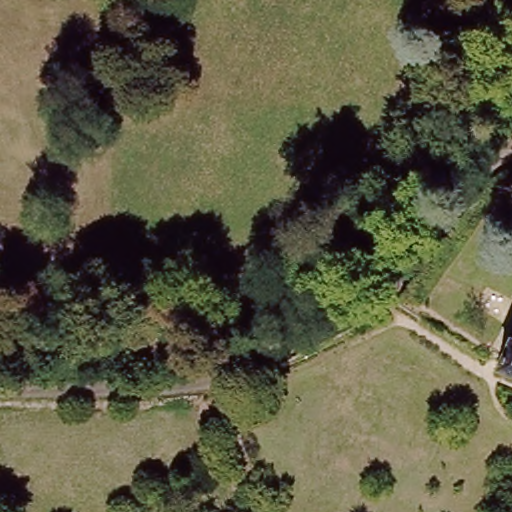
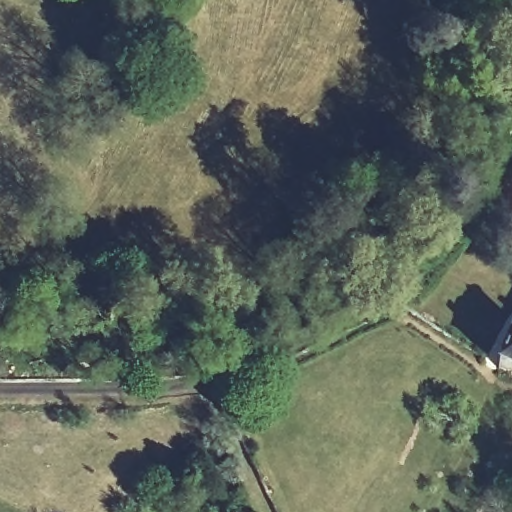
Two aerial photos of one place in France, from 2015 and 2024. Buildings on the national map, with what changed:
unchanged [(499,373),(512,342),(512,343),(512,379),(499,373)]

